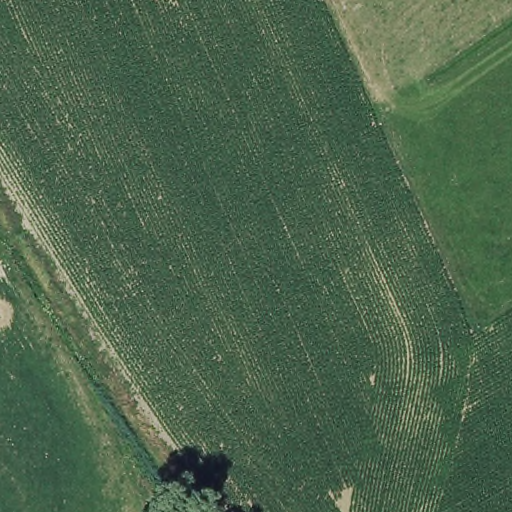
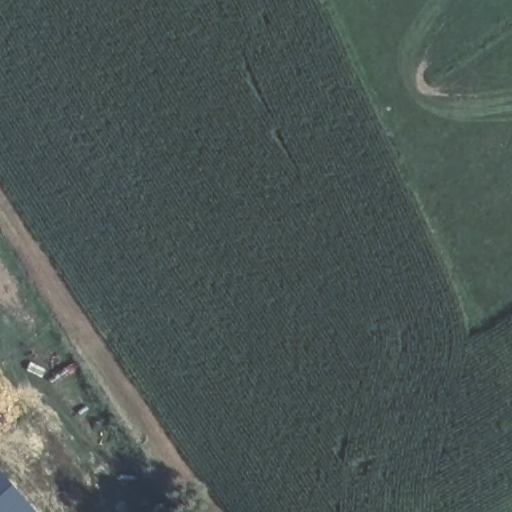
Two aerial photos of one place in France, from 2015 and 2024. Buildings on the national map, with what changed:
new [(35,512),(0,512),(0,472),(35,512)]

